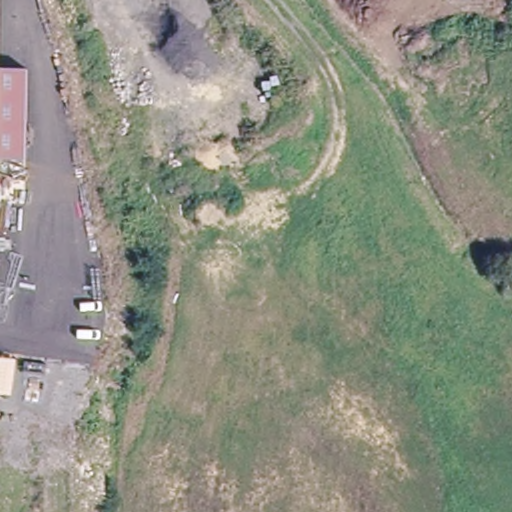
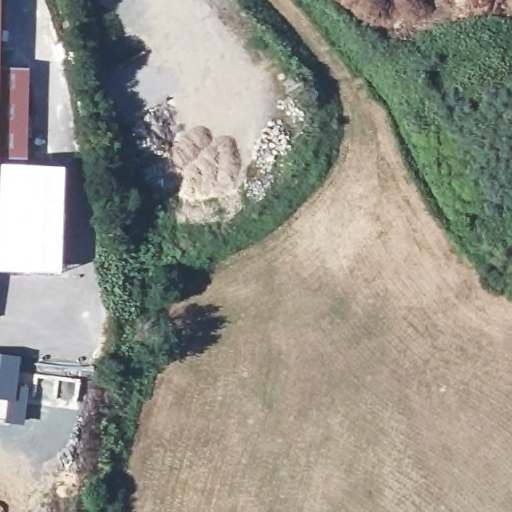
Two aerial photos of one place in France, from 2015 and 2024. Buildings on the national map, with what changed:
unchanged [(21,157),(0,157),(0,68),(19,67),(21,157)]
new [(60,273),(0,273),(0,165),(64,167),(60,273)]
unchanged [(0,353),(13,353),(12,363),(11,389),(0,388),(0,353)]

